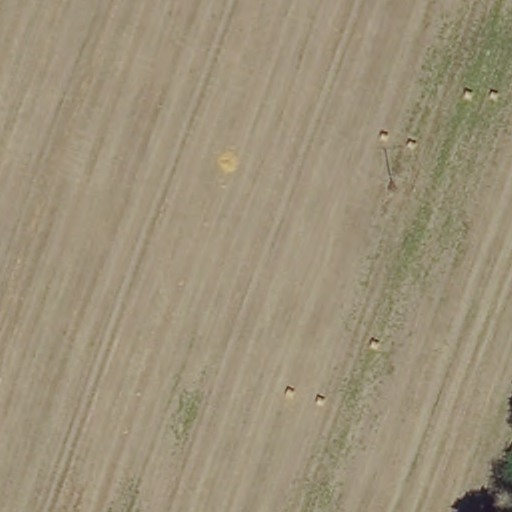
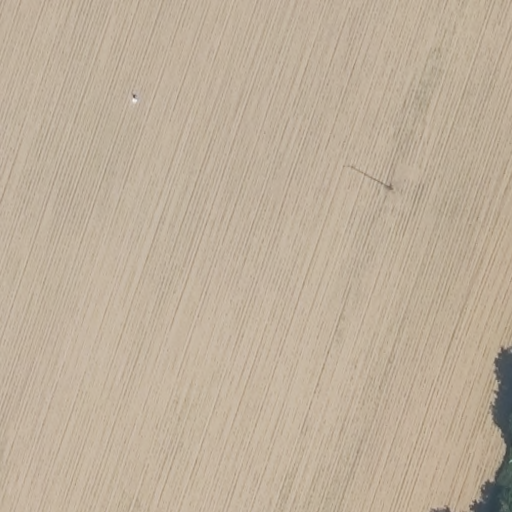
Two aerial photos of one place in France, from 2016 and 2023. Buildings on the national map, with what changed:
[]

